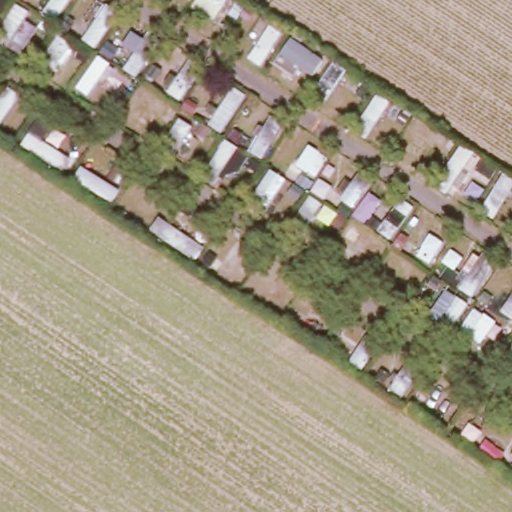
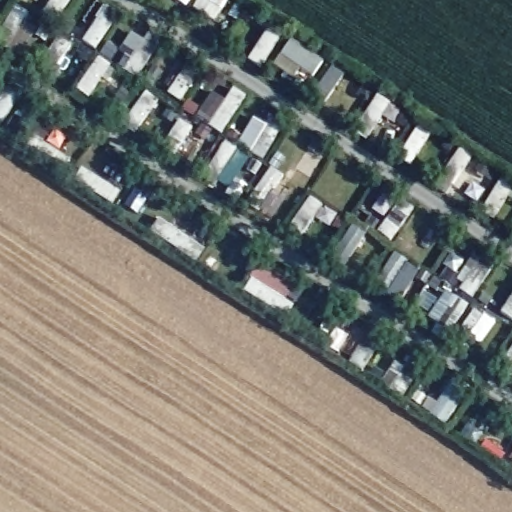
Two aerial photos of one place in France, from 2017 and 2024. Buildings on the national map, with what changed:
[]

